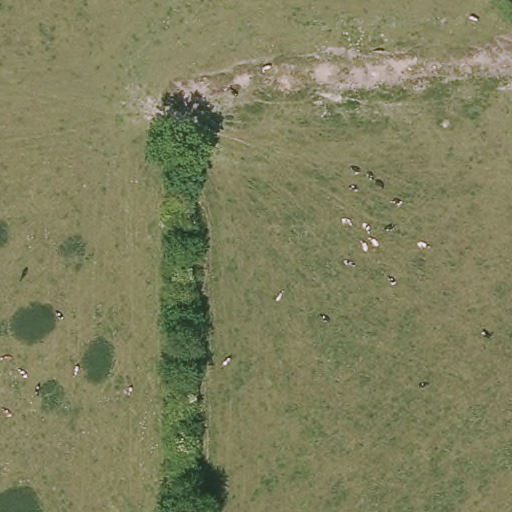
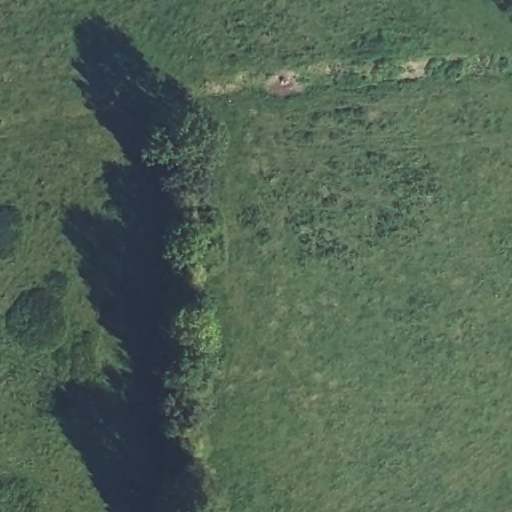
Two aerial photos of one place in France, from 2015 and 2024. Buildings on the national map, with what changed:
[]

